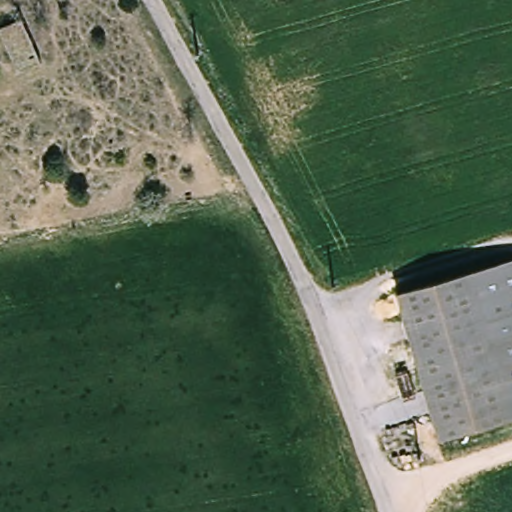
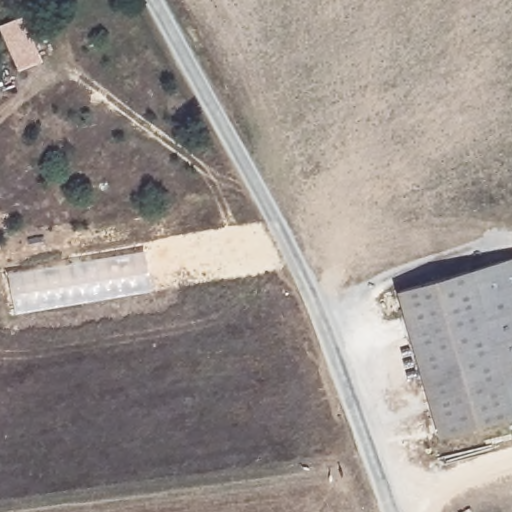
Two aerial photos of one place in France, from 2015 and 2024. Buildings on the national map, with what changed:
unchanged [(48,61),(25,74),(3,27),(27,16),(48,61)]
new [(143,251),(150,288),(13,312),(7,273),(143,251)]
unchanged [(404,294),(512,268),(512,418),(447,436),(404,294)]

